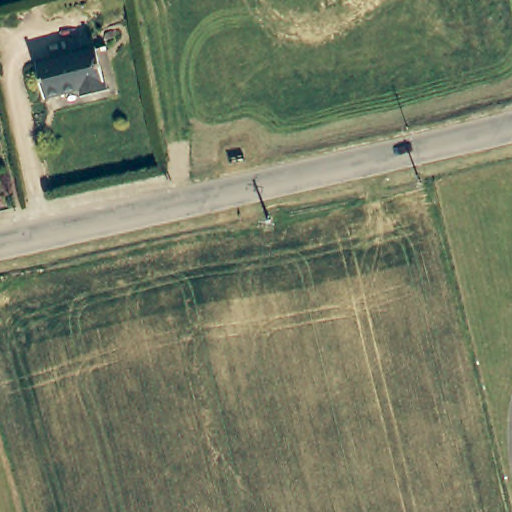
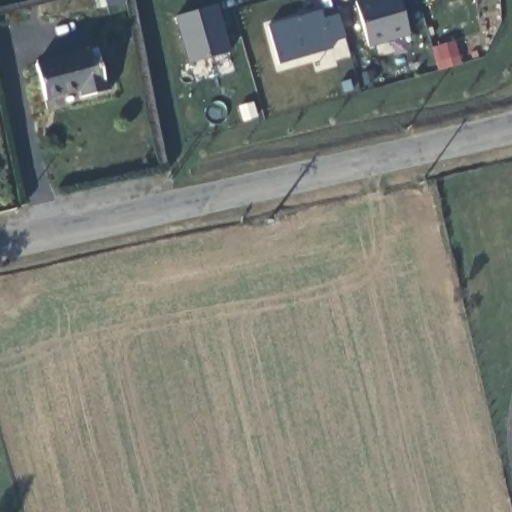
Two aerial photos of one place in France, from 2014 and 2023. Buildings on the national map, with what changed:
new [(368,47),(356,0),(400,0),(410,35),(368,47)]
new [(190,62),(175,15),(218,4),(231,50),(190,62)]
new [(331,42),(332,48),(280,64),(267,26),(322,10),(325,17),(338,14),(346,37),(331,42)]
unchanged [(101,43),(111,89),(41,104),(31,59),(101,43)]

